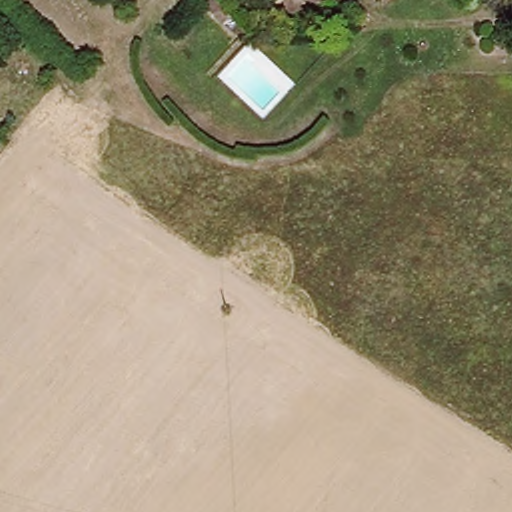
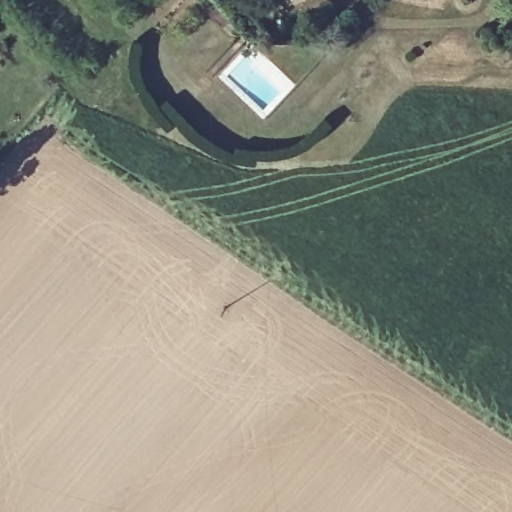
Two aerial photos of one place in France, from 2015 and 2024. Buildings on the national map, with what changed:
[]

